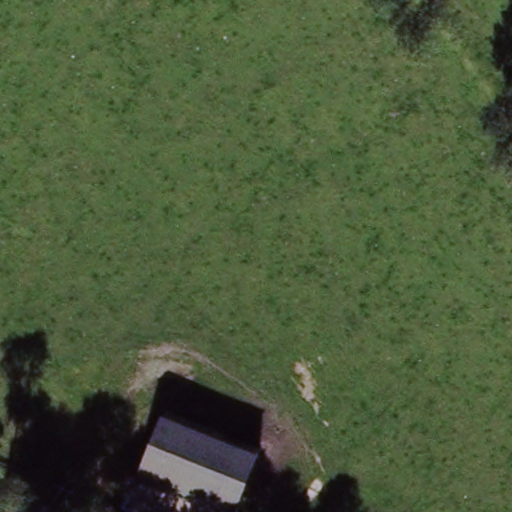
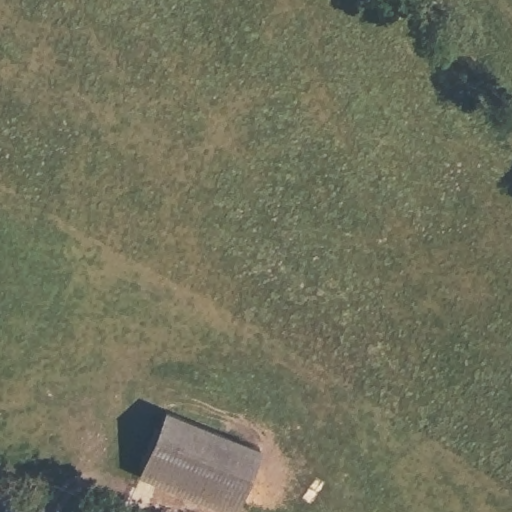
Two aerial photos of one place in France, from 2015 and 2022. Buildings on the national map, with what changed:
unchanged [(167,411),(255,450),(231,502),(142,464),(167,411)]

